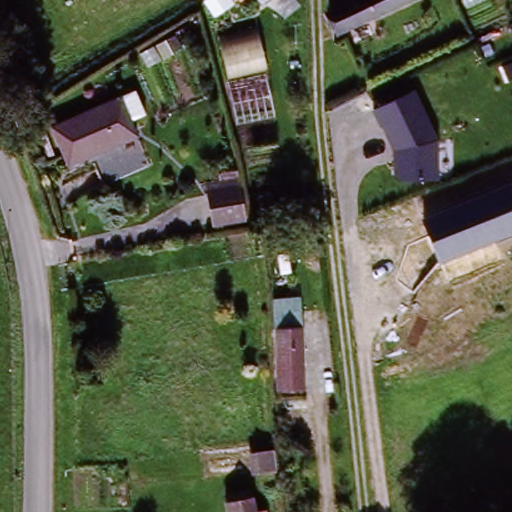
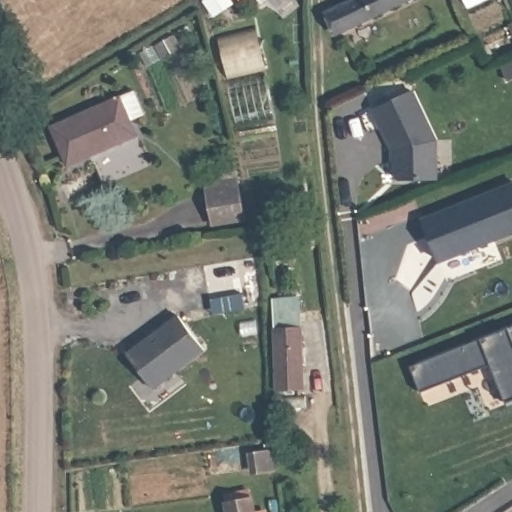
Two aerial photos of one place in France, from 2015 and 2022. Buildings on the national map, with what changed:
unchanged [(231,0),(252,0),(240,10),(231,0)]
unchanged [(330,5),(344,0),(433,0),(433,2),(341,34),(330,5)]
unchanged [(258,35),(268,75),(228,81),(218,42),(258,35)]
unchanged [(147,117),(134,124),(139,137),(67,169),(50,131),(135,91),(147,117)]
unchanged [(437,139),(437,187),(392,187),(392,154),(374,111),(414,92),(437,139)]
unchanged [(83,164),(130,150),(136,172),(90,187),(83,164)]
unchanged [(242,215),(210,221),(204,187),(235,181),(242,215)]
unchanged [(420,219),(512,184),(512,233),(439,263),(420,219)]
new [(205,351),(154,390),(125,354),(176,313),(205,351)]
unchanged [(305,327),(304,388),(275,387),(275,327),(305,327)]
new [(507,402),(490,363),(421,392),(410,366),(480,339),(509,328),(512,327),(512,400),(507,402)]
unchanged [(250,453),(275,452),(277,474),(251,478),(250,453)]
unchanged [(252,497),(258,512),(246,512),(242,501),(252,497)]
unchanged [(217,510),(242,501),(246,512),(218,512),(217,510)]

